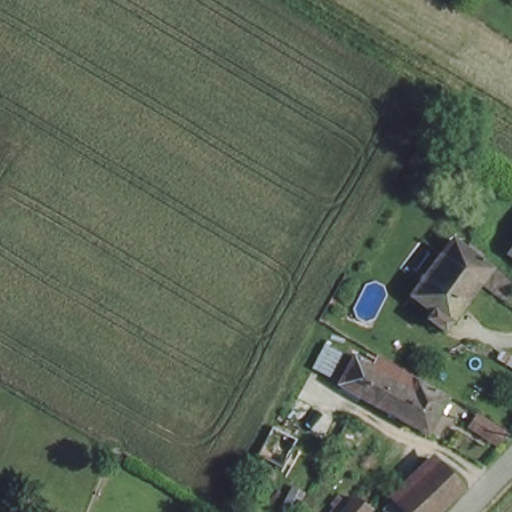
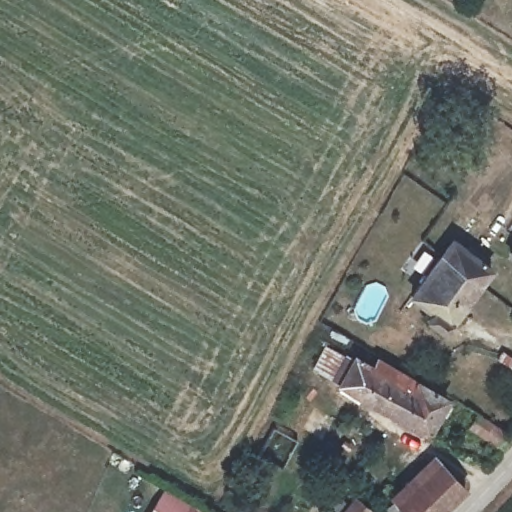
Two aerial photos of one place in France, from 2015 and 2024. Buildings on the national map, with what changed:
unchanged [(413,300),(442,259),(453,243),(492,266),(481,284),(454,325),(413,300)]
unchanged [(400,372),(424,384),(407,417),(364,395),(359,392),(356,398),(342,392),(345,385),(335,381),(347,357),(356,361),(359,357),(378,368),(397,378),(400,372)]
unchanged [(407,417),(424,384),(452,399),(436,430),(407,417)]
unchanged [(503,452),(471,435),(478,423),(510,439),(503,452)]
unchanged [(396,494),(434,463),(462,492),(440,512),(410,512),(408,510),(406,512),(396,512),(387,502),(396,494)]
new [(201,509),(199,512),(150,512),(165,487),(201,509)]
unchanged [(369,512),(344,512),(359,497),(371,510),(369,512)]

